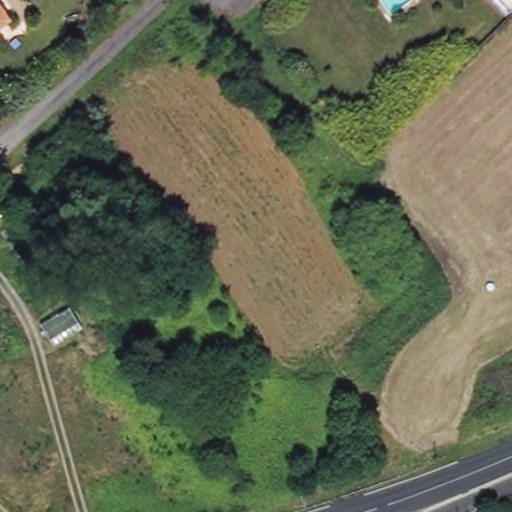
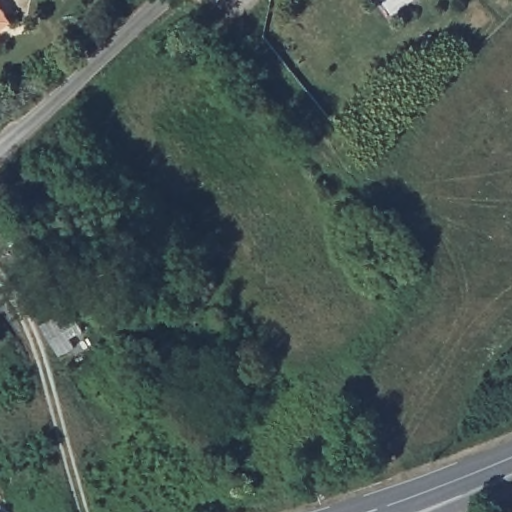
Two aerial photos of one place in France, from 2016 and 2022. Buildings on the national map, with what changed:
unchanged [(2,17),(9,25),(0,32),(0,14),(2,17)]

